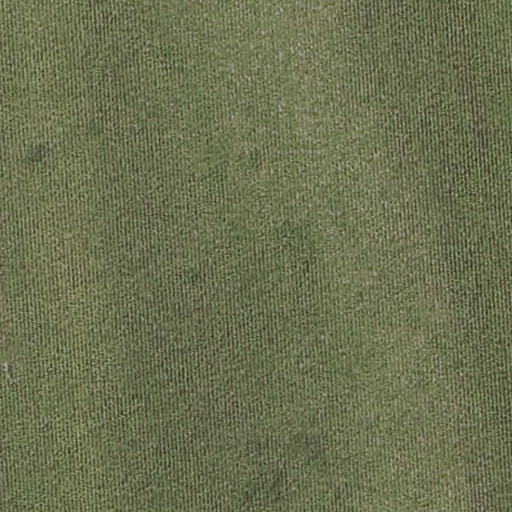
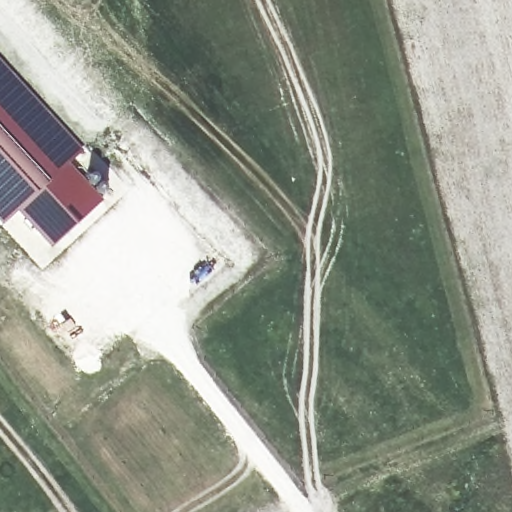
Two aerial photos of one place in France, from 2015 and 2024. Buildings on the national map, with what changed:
new [(70,162),(104,199),(51,248),(17,211),(3,224),(0,221),(0,57),(85,148),(70,162)]

